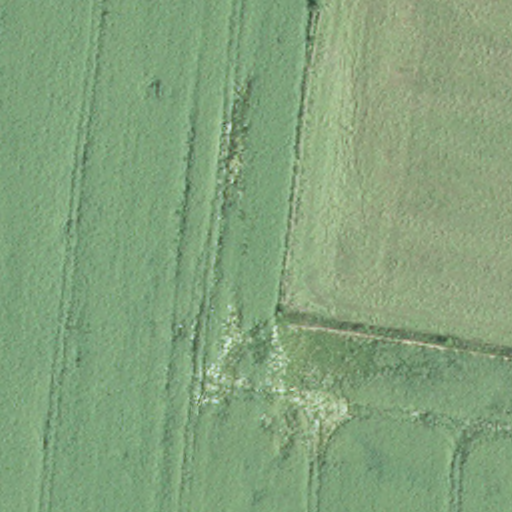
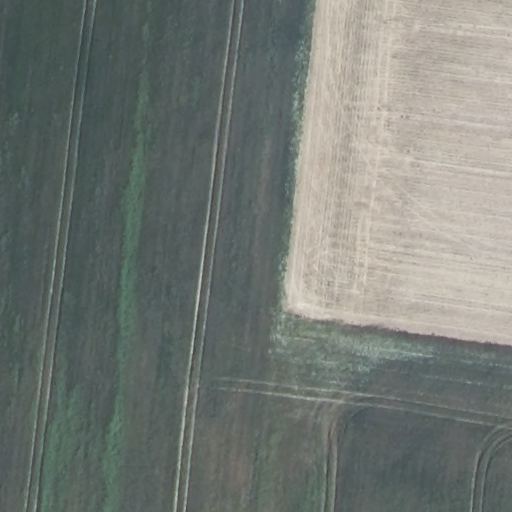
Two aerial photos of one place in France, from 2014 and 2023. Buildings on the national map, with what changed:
[]

